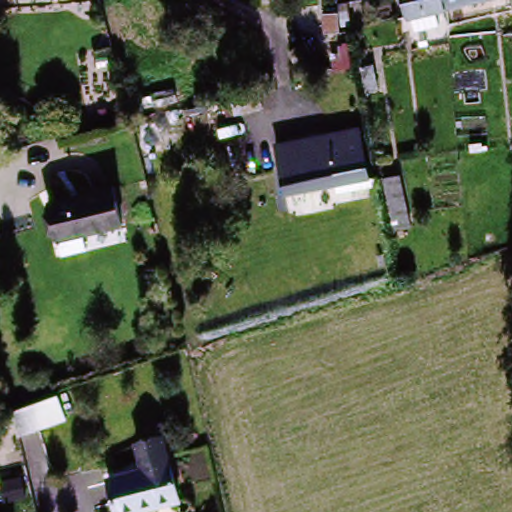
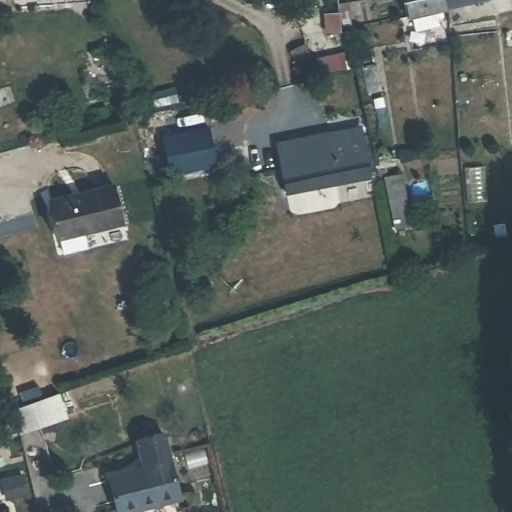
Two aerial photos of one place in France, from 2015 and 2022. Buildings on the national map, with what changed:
unchanged [(413,30),(410,16),(405,16),(402,0),(446,0),(474,0),(446,6),(435,10),(437,24),(413,30)]
unchanged [(338,10),(340,28),(324,30),(322,12),(338,10)]
unchanged [(314,61),(295,74),(290,66),(295,63),(287,49),(303,39),(314,61)]
unchanged [(372,62),(376,82),(372,84),(372,89),(365,90),(360,65),(372,62)]
unchanged [(269,87),(273,103),(234,112),(230,97),(269,87)]
new [(210,129),(214,165),(174,172),(164,137),(210,129)]
unchanged [(372,171),(367,172),(369,181),(363,182),(364,190),(336,196),(334,189),(286,198),(280,174),(292,171),(286,145),(322,137),(325,149),(360,140),(362,149),(367,147),(372,171)]
unchanged [(399,172),(410,224),(394,227),(382,176),(399,172)]
unchanged [(112,180),(121,218),(82,227),(85,241),(61,248),(48,195),(112,180)]
unchanged [(58,397),(65,421),(18,437),(12,413),(58,397)]
unchanged [(141,466),(135,440),(162,432),(179,497),(127,512),(117,512),(107,475),(141,466)]

